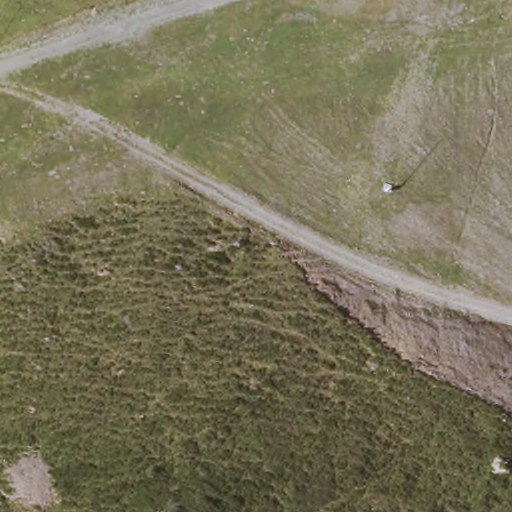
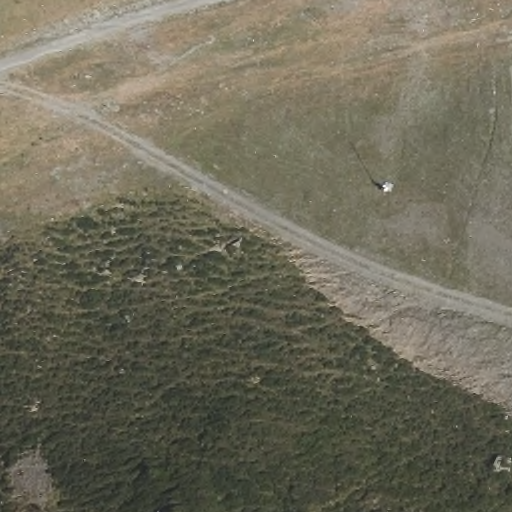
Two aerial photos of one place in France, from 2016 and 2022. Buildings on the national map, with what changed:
[]

